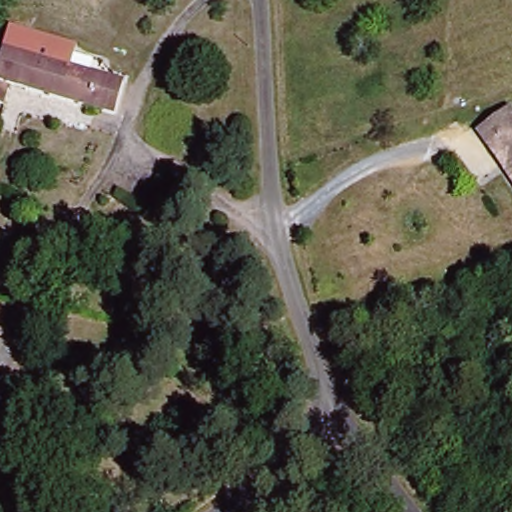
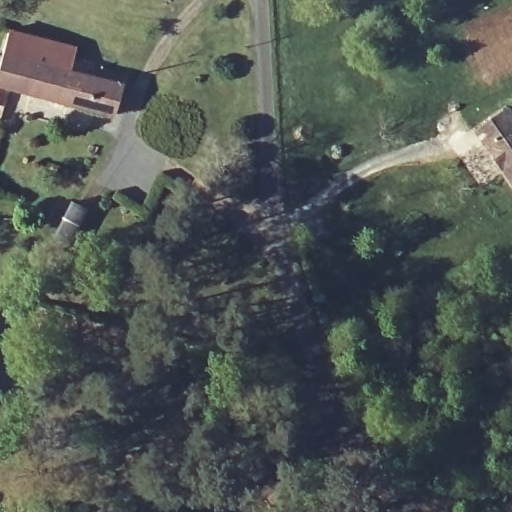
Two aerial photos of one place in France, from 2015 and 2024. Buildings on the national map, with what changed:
unchanged [(68,70),(122,85),(113,116),(0,87),(0,60),(6,28),(74,46),(68,70)]
unchanged [(512,120),(512,187),(471,130),(502,106),(512,120)]

